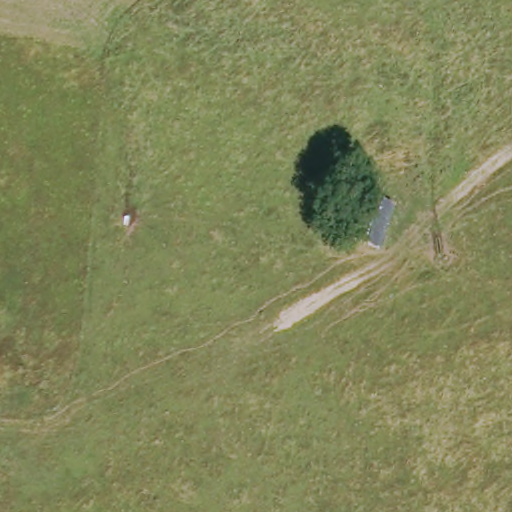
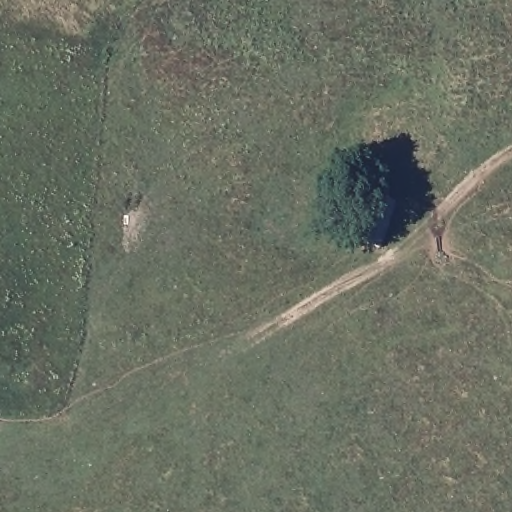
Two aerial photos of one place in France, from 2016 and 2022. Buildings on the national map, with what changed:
unchanged [(367,194),(401,206),(385,255),(350,243),(367,194)]

